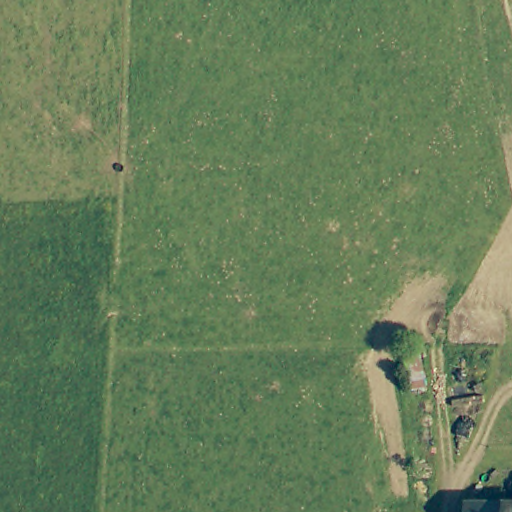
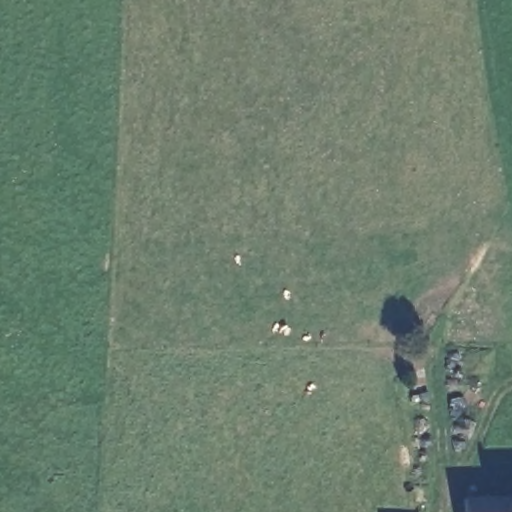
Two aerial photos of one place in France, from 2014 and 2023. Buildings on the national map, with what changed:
unchanged [(409,399),(402,370),(400,360),(415,358),(423,397),(409,399)]
unchanged [(462,501),(512,500),(512,512),(462,512),(462,501)]

